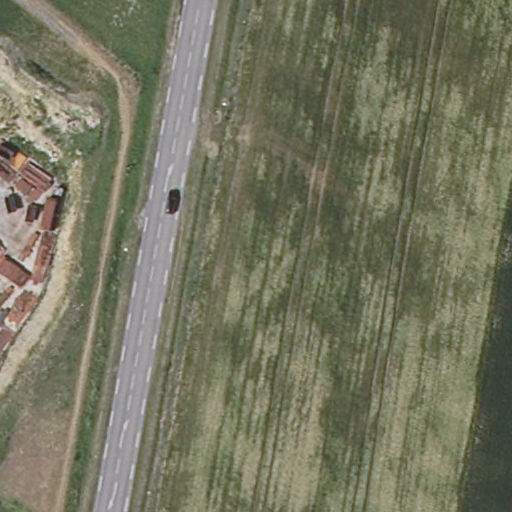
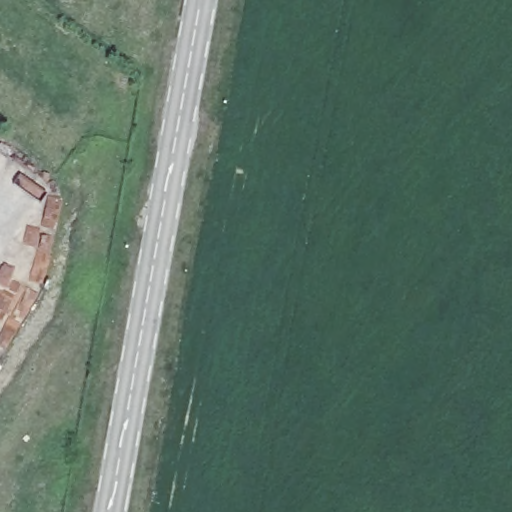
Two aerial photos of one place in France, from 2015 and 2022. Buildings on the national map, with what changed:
[]

